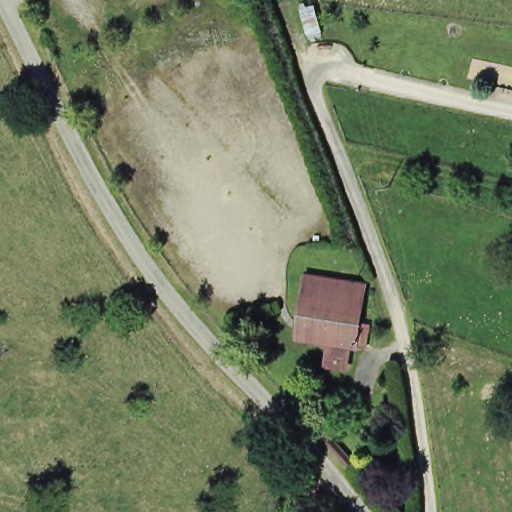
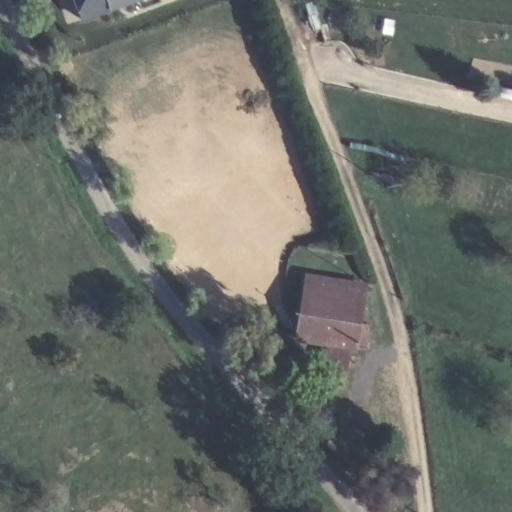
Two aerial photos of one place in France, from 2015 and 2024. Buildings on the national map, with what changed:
new [(160,2),(142,8),(139,1),(81,23),(72,0),(159,0),(160,2)]
unchanged [(300,312),(306,275),(363,283),(356,327),(354,327),(350,349),(325,346),(296,341),(300,312)]

